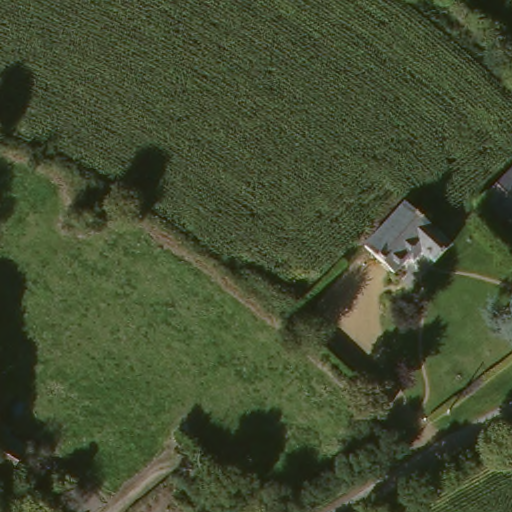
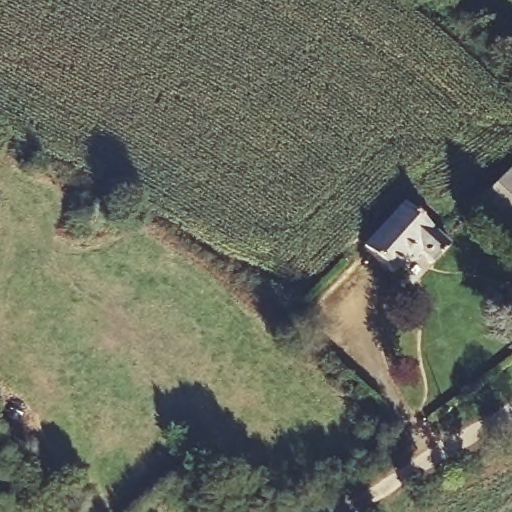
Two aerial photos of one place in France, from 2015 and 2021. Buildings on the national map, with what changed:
unchanged [(512,167),(512,230),(480,200),(512,167)]
unchanged [(437,258),(423,249),(395,270),(368,243),(406,203),(451,243),(437,258)]
unchanged [(14,479),(0,472),(0,439),(24,450),(14,479)]

